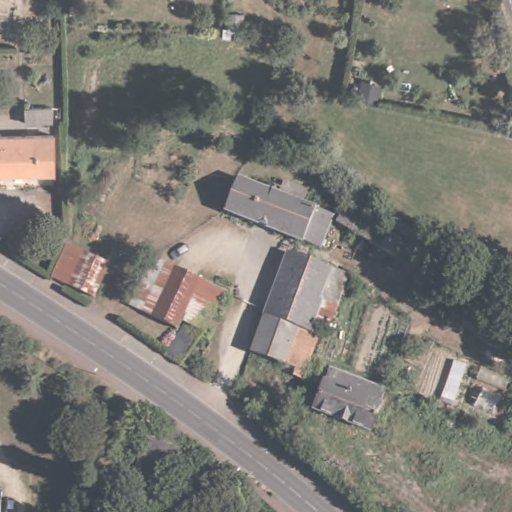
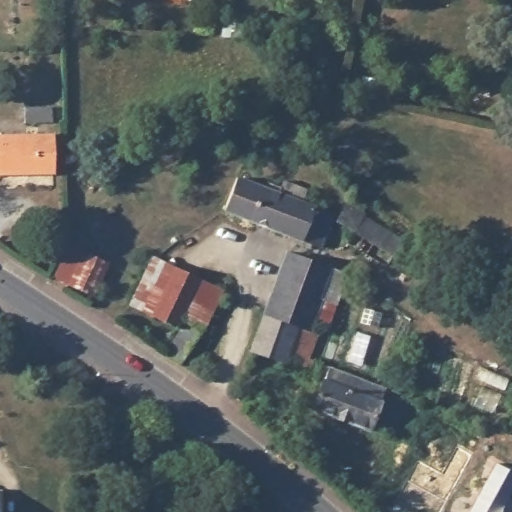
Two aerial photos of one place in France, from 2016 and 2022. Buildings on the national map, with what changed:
unchanged [(53,114),(25,114),(26,97),(54,98),(53,114)]
unchanged [(48,172),(0,173),(0,135),(48,133),(48,172)]
unchanged [(262,182),(249,216),(222,207),(234,172),(262,182)]
unchanged [(331,207),(319,239),(249,216),(262,182),(331,207)]
unchanged [(393,247),(337,215),(348,196),(353,197),(361,187),(369,194),(365,204),(404,228),(393,247)]
unchanged [(113,258),(93,298),(55,275),(71,240),(113,258)]
unchanged [(149,246),(226,287),(184,366),(164,356),(175,317),(128,300),(149,246)]
unchanged [(284,321),(267,316),(289,253),(348,275),(343,289),(329,287),(314,329),(284,321)]
unchanged [(264,323),(280,329),(284,321),(314,329),(302,361),(319,367),(312,385),(297,380),(299,372),(253,355),(264,323)]
unchanged [(377,438),(308,410),(324,368),(393,396),(377,438)]
unchanged [(176,460),(145,452),(153,421),(185,429),(176,460)]
new [(496,464),(512,472),(512,492),(501,512),(469,512),(496,464)]
unchanged [(3,512),(0,512),(0,485),(4,485),(3,512)]

